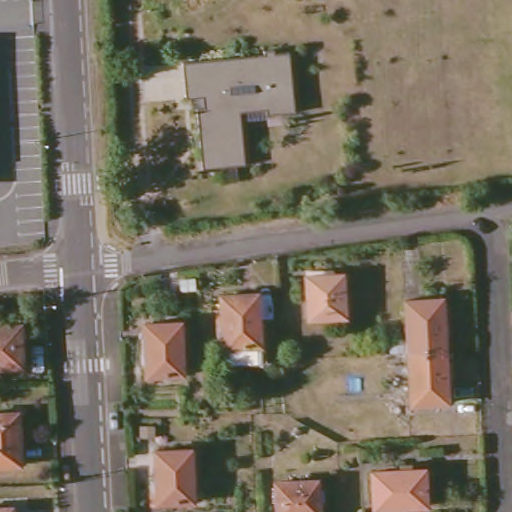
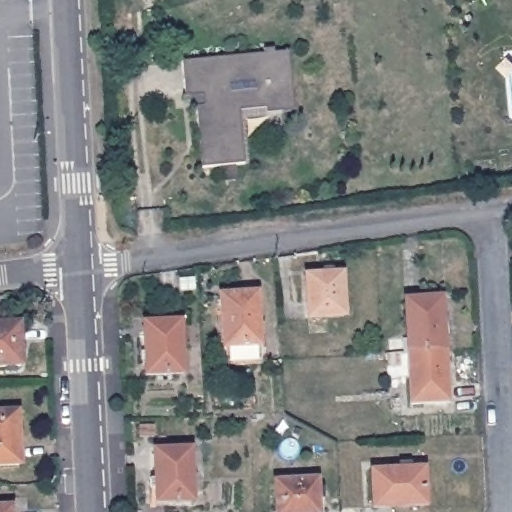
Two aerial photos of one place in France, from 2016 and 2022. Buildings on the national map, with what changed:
unchanged [(198,110),(191,111),(191,97),(186,99),(184,64),(289,54),(295,112),(241,119),(246,164),(238,165),(238,182),(223,183),(223,166),(203,168),(198,110)]
unchanged [(309,318),(306,276),(341,275),(344,316),(309,318)]
unchanged [(223,348),(221,295),(258,293),(261,346),(223,348)]
unchanged [(408,352),(405,300),(443,298),(446,350),(408,352)]
unchanged [(146,377),(143,324),(180,322),(183,375),(146,377)]
unchanged [(0,324),(19,323),(21,366),(0,367),(0,324)]
unchanged [(448,402),(410,404),(408,352),(446,350),(448,402)]
unchanged [(0,414),(18,413),(20,465),(0,466),(0,414)]
unchanged [(156,505),(153,452),(189,450),(191,501),(156,505)]
unchanged [(374,507),(372,471),(424,468),(426,505),(374,507)]
unchanged [(276,482),(316,480),(318,512),(277,512),(276,482)]
unchanged [(0,508),(11,507),(11,512),(0,512),(0,508)]

